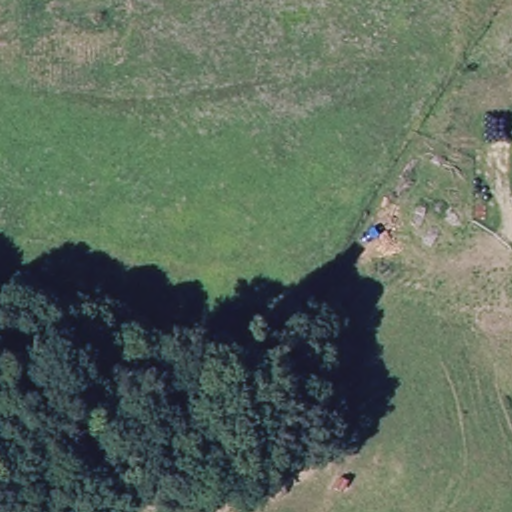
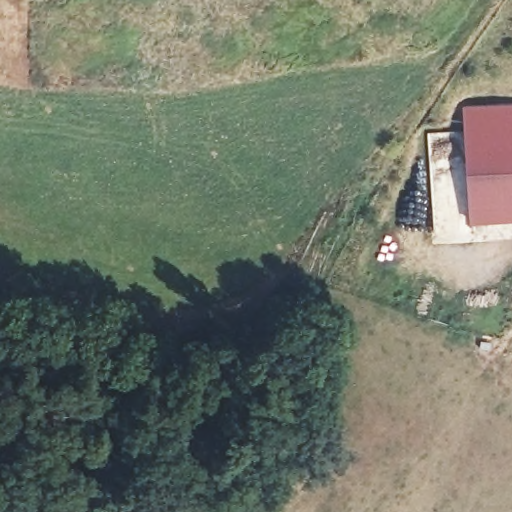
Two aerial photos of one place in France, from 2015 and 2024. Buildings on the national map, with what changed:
new [(471,222),(462,107),(512,104),(512,219),(471,222)]

